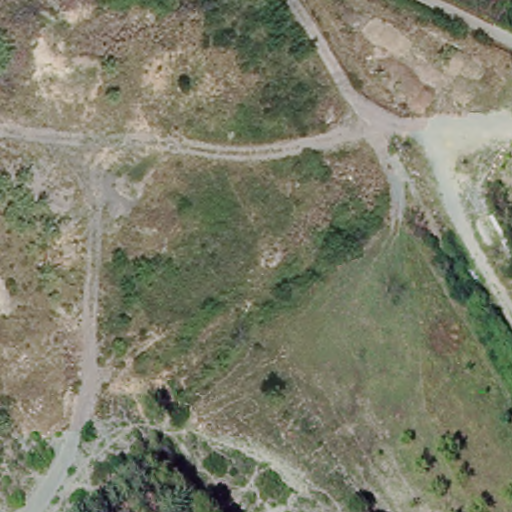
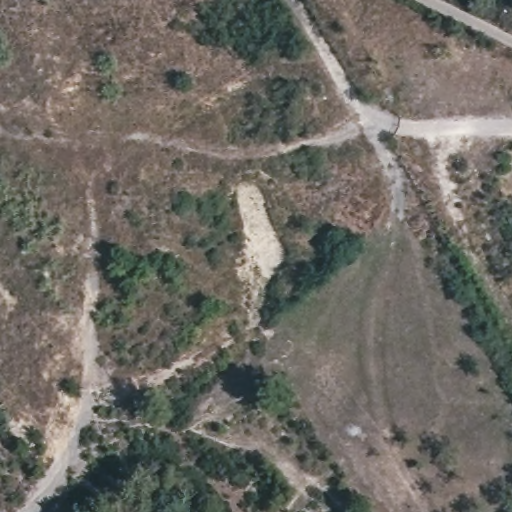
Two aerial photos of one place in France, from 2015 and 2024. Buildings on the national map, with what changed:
[]

